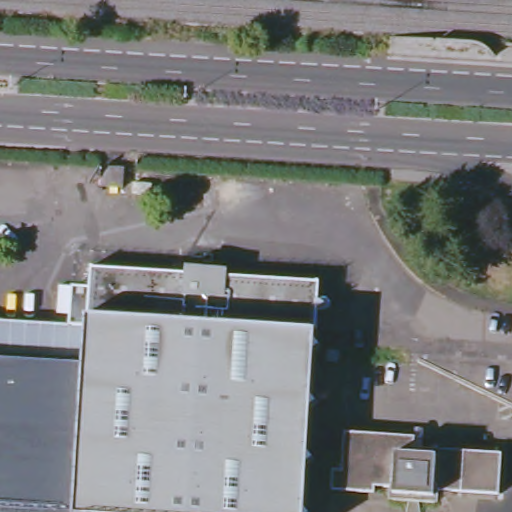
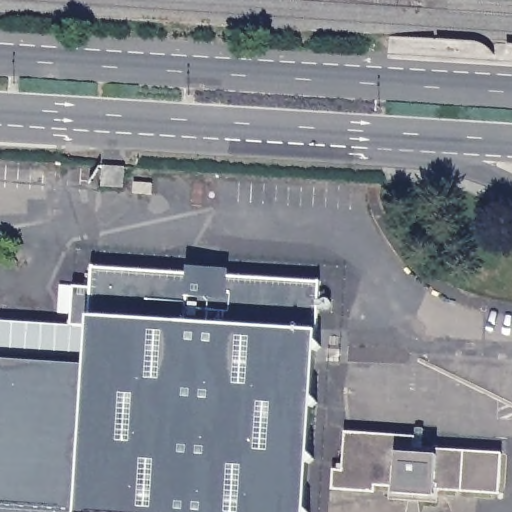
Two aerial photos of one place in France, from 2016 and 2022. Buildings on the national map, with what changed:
unchanged [(512,62),(392,55),(393,39),(512,46),(512,62)]
unchanged [(130,196),(106,195),(107,175),(130,176),(130,196)]
unchanged [(322,357),(316,362),(316,371),(314,406),(318,412),(313,417),(310,462),(315,468),(310,472),(308,495),(307,512),(0,512),(0,337),(65,341),(68,300),(89,302),(90,278),(183,284),(183,278),(225,281),(225,287),(321,292),(318,351),(322,357)]
unchanged [(395,489),(375,486),(375,493),(332,488),(335,468),(343,470),(347,430),(417,439),(416,450),(504,460),(500,500),(437,493),(436,506),(393,501),(395,489)]

